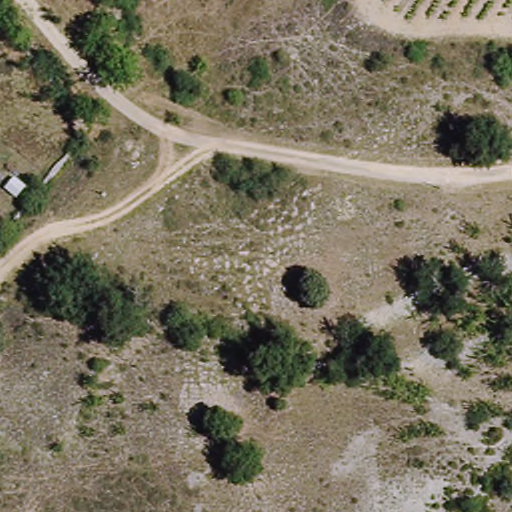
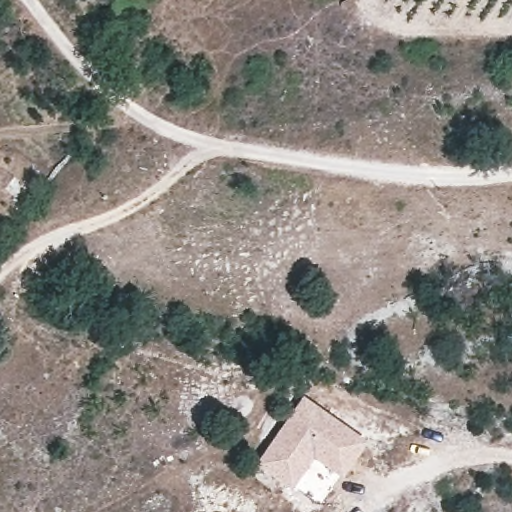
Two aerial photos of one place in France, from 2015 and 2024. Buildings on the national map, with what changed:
new [(369,442),(343,477),(316,458),(293,489),(257,462),(304,396),(369,442)]

